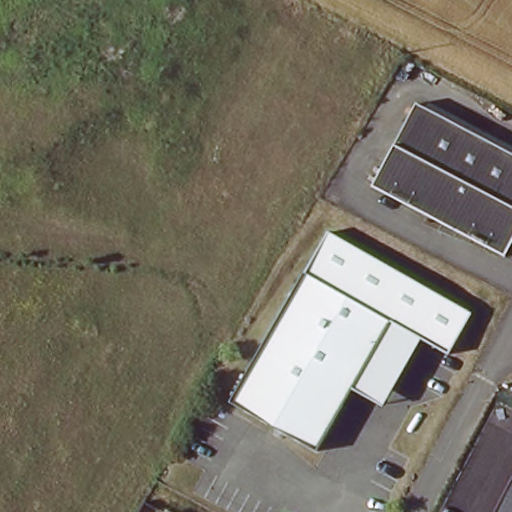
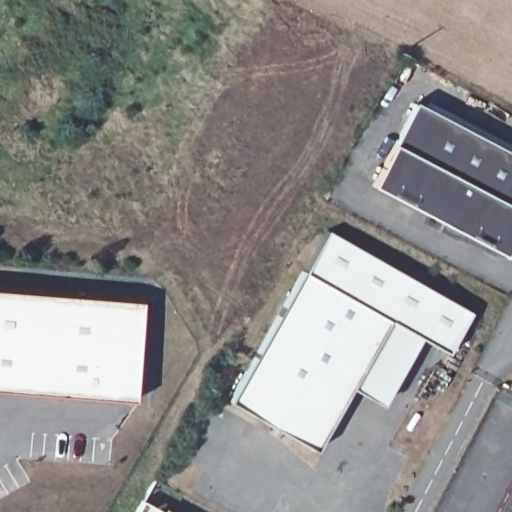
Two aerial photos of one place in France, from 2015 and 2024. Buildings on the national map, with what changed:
unchanged [(443,221),(371,185),(415,97),(512,148),(512,240),(509,245),(505,253),(443,221)]
unchanged [(328,231),(472,312),(449,355),(423,340),(383,407),(351,390),(393,319),(309,268),(328,231)]
unchanged [(309,268),(393,319),(351,390),(318,449),(228,397),(304,265),(309,268)]
new [(134,401),(0,390),(0,292),(143,302),(134,401)]
unchanged [(497,512),(512,482),(512,512),(497,512)]
unchanged [(165,512),(166,511),(167,512),(165,512)]

